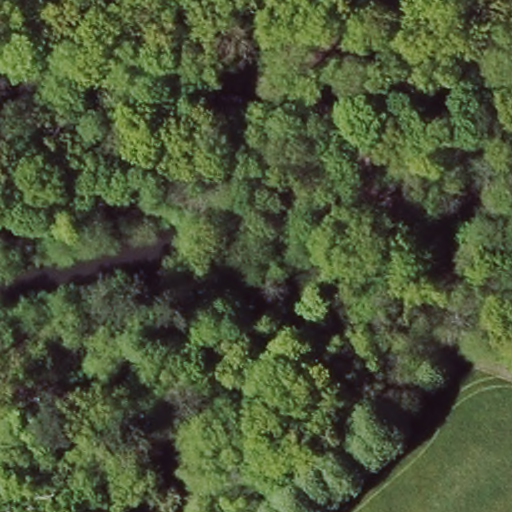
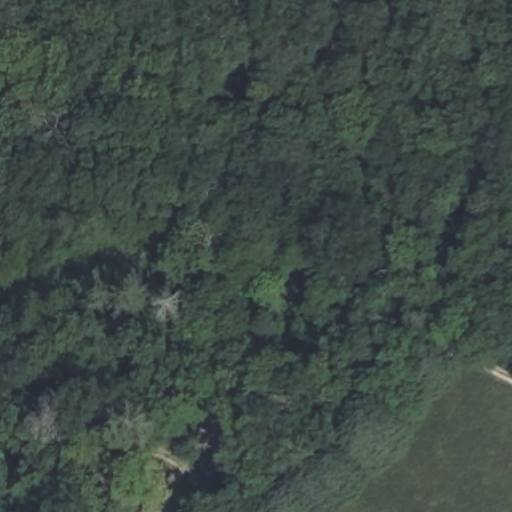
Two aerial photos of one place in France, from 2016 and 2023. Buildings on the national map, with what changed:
[]

